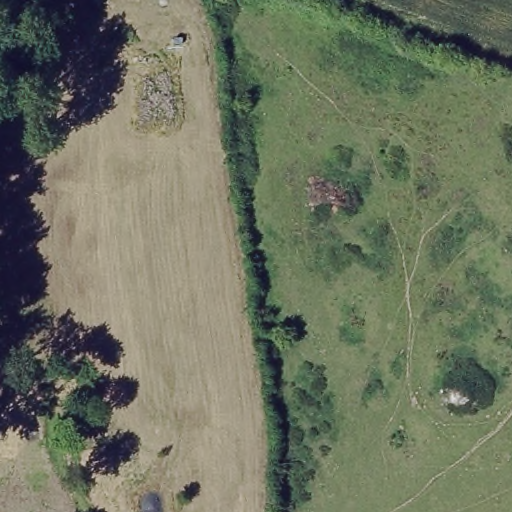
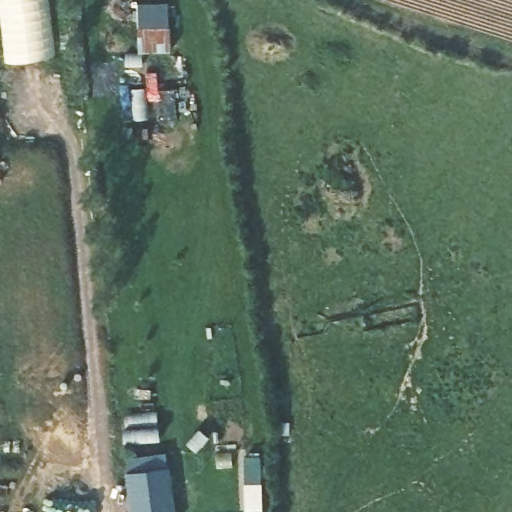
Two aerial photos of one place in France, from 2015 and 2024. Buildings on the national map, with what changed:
new [(0,1),(0,0),(49,0),(55,55),(6,62),(0,1)]
new [(138,52),(137,3),(169,2),(171,51),(138,52)]
new [(166,452),(174,512),(132,512),(124,458),(166,452)]
new [(261,456),(263,509),(245,510),(244,456),(261,456)]

